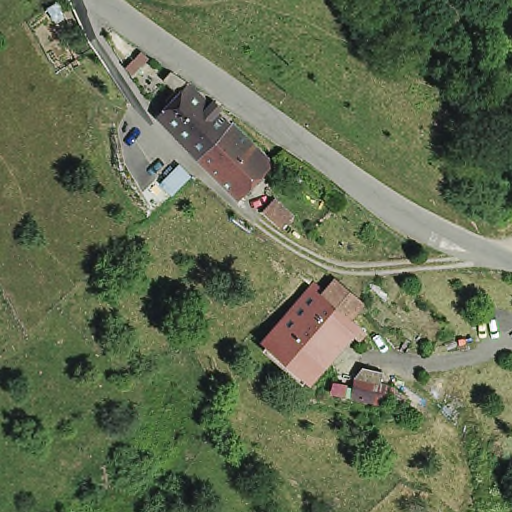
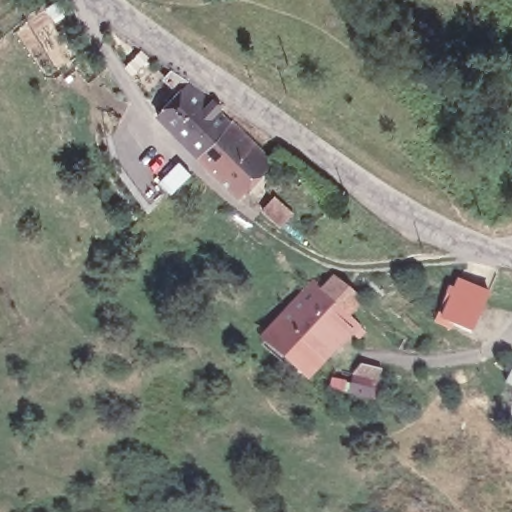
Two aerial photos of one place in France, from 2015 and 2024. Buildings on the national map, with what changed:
unchanged [(210,167),(198,155),(158,114),(182,90),(168,77),(174,71),(176,69),(190,82),(231,121),(242,132),(272,159),(239,195),(210,167)]
unchanged [(288,221),(283,226),(264,209),(275,197),(295,213),(288,221)]
new [(472,334),(439,321),(457,280),(490,293),(472,334)]
unchanged [(317,293),(323,299),(335,286),(356,306),(343,320),(360,334),(337,359),(292,319),(317,293)]
unchanged [(337,359),(312,388),(267,349),(292,319),(337,359)]
unchanged [(357,371),(380,377),(375,396),(352,390),(357,371)]

